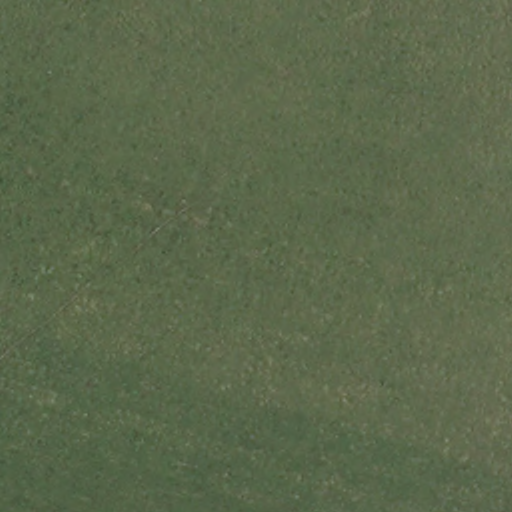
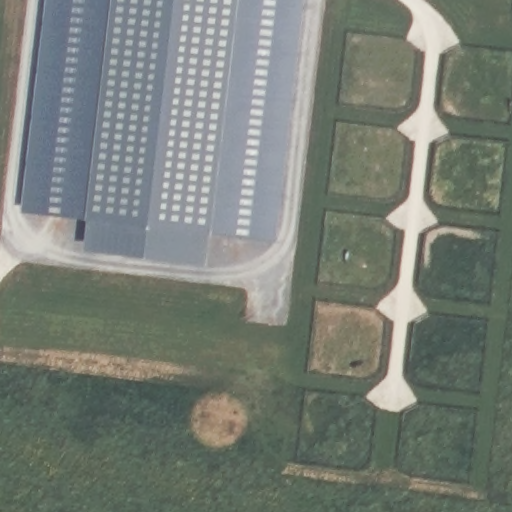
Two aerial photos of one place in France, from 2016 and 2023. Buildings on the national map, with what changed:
new [(208,235),(204,271),(79,257),(86,222),(17,214),(44,0),(297,0),(271,239),(208,235)]

